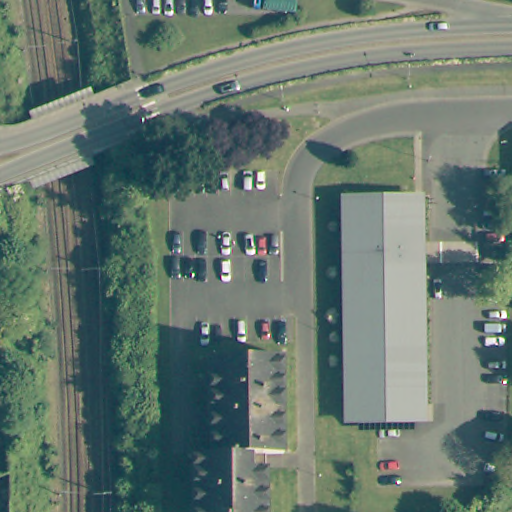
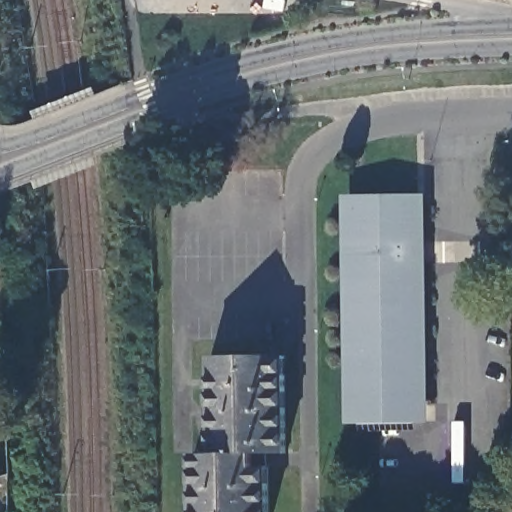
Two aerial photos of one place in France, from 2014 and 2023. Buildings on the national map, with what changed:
unchanged [(346,198),(410,198),(411,423),(349,423),(346,198)]
unchanged [(191,454),(206,454),(207,356),(280,356),(280,454),(259,454),(259,468),(263,468),(263,512),(191,512),(191,454)]

